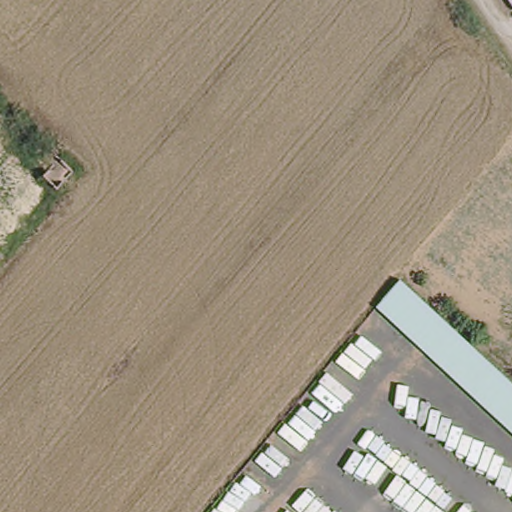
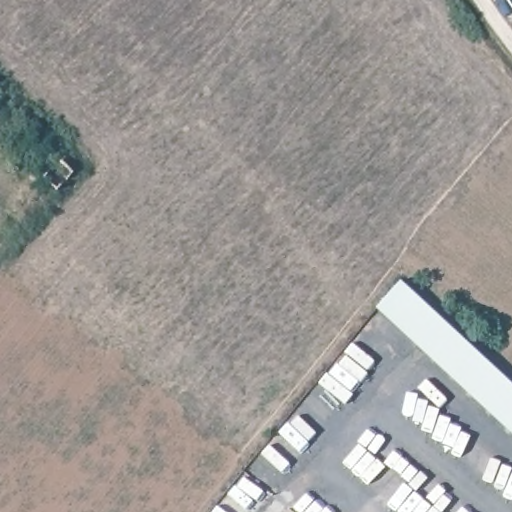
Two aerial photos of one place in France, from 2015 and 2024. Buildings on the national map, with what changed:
unchanged [(512,382),(512,434),(378,307),(401,279),(512,382)]

